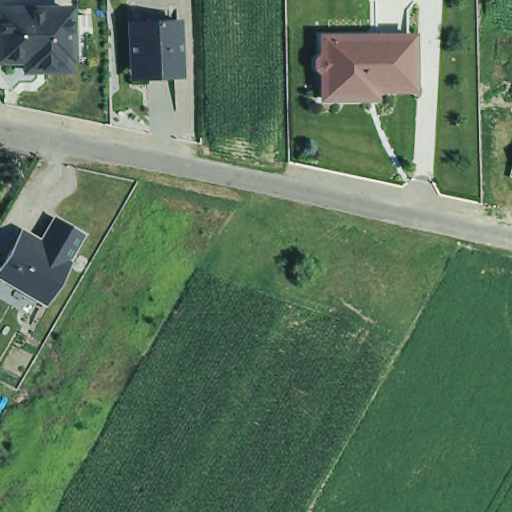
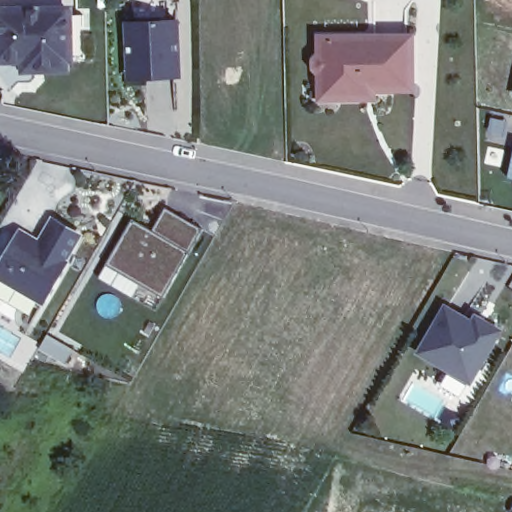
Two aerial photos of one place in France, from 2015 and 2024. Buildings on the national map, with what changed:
unchanged [(69,63),(71,72),(22,73),(22,63),(0,63),(0,13),(71,10),(74,62),(69,63)]
unchanged [(132,49),(130,14),(180,12),(182,47),(178,47),(179,67),(148,69),(133,70),(132,49)]
unchanged [(370,94),(346,95),(332,95),(325,95),(325,85),(325,69),(320,64),(320,57),(325,51),(325,34),(330,33),(416,33),(417,85),(378,86),(378,94),(370,94)]
new [(166,208),(202,229),(188,253),(162,297),(106,264),(132,219),(152,231),(166,208)]
unchanged [(67,254),(70,255),(47,294),(0,267),(0,263),(21,226),(45,240),(43,236),(57,212),(83,227),(67,254)]
new [(502,329),(468,385),(414,352),(443,304),(502,329)]

